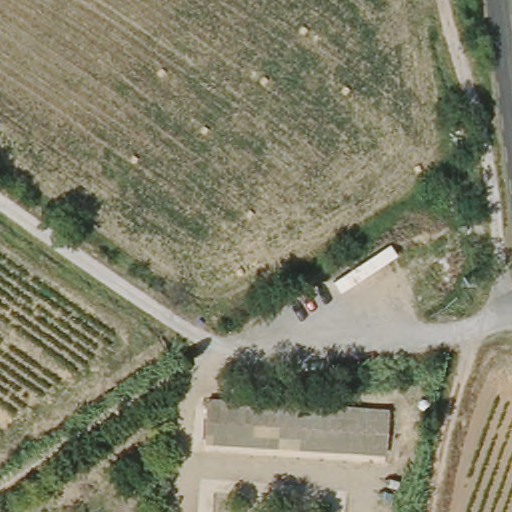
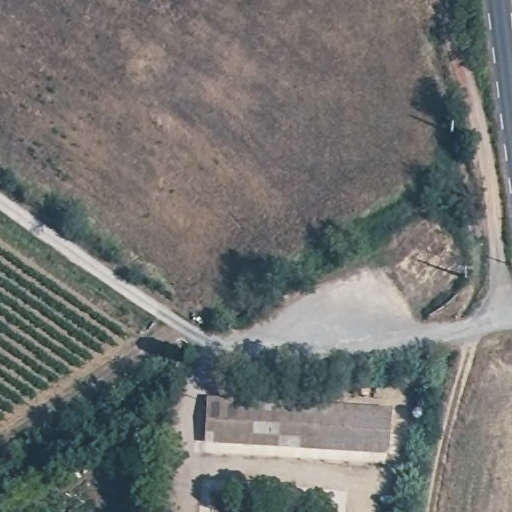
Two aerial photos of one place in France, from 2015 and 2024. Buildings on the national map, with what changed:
unchanged [(387,457),(203,448),(205,411),(267,414),(266,435),(388,441),(387,457)]
unchanged [(388,441),(266,435),(267,414),(389,420),(388,441)]

